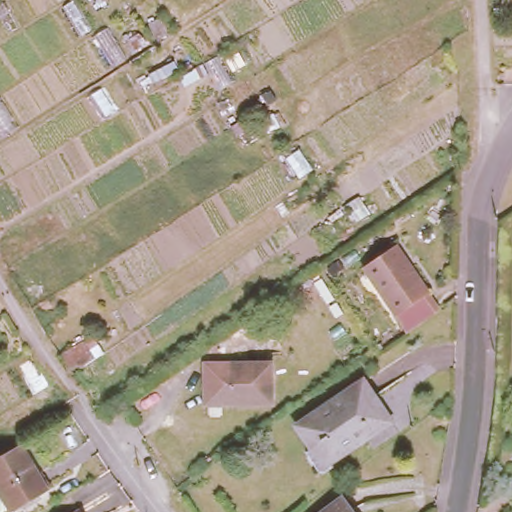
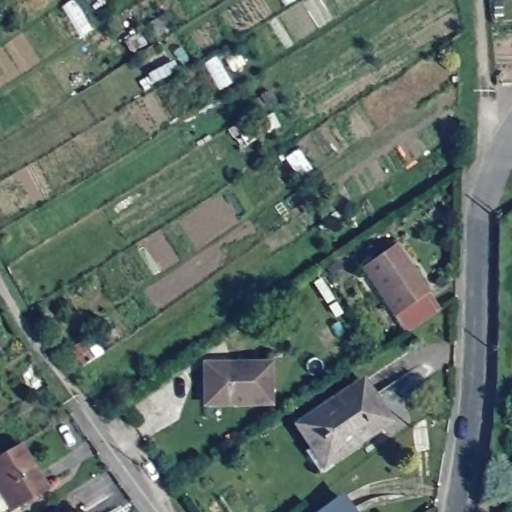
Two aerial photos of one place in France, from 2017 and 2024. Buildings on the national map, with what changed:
unchanged [(389,248),(395,244),(410,268),(416,277),(383,299),(362,268),(389,248)]
unchanged [(383,299),(416,277),(427,294),(426,296),(436,311),(405,332),(383,299)]
unchanged [(270,399),(225,401),(204,401),(203,361),(270,360),(270,371),(270,399)]
unchanged [(337,465),(327,472),(322,470),(310,453),(315,449),(297,423),(364,377),(376,394),(393,419),(389,422),(335,462),(337,465)]
unchanged [(141,425),(121,439),(102,413),(124,398),(141,425)]
unchanged [(20,441),(37,470),(47,487),(10,508),(7,504),(0,509),(0,452),(7,448),(20,441)]
unchanged [(341,492),(354,512),(311,512),(341,492)]
unchanged [(77,505),(81,512),(66,512),(77,505)]

